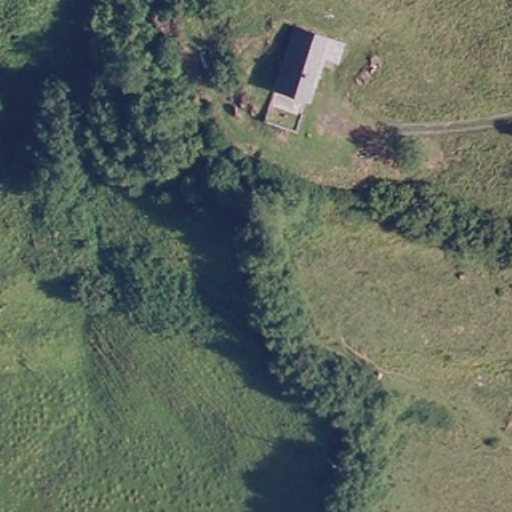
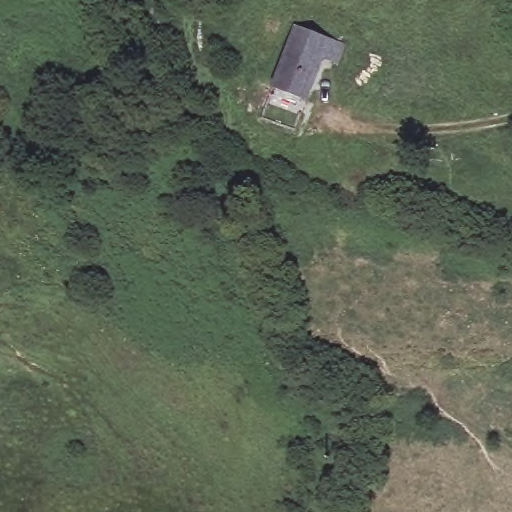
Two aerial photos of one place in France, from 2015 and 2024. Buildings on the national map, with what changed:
unchanged [(277,83),(297,25),(338,41),(311,99),(277,83)]

